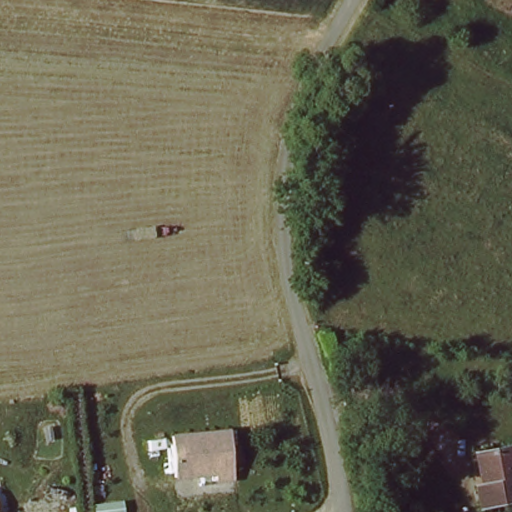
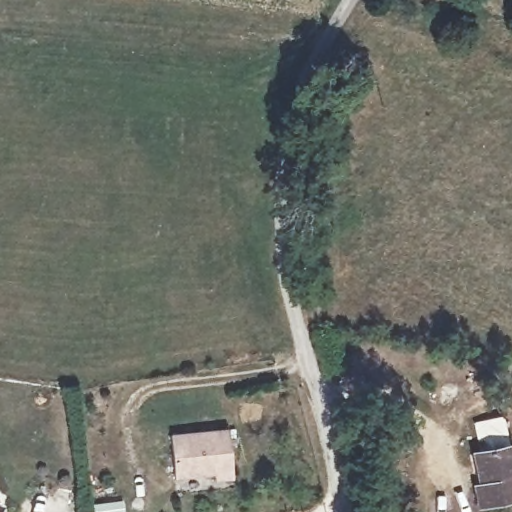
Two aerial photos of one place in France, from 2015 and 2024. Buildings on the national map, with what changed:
unchanged [(230,426),(232,474),(215,475),(214,468),(174,469),(172,428),(230,426)]
unchanged [(512,503),(481,509),(476,489),(478,488),(472,456),(481,454),(511,447),(512,452),(512,503)]

